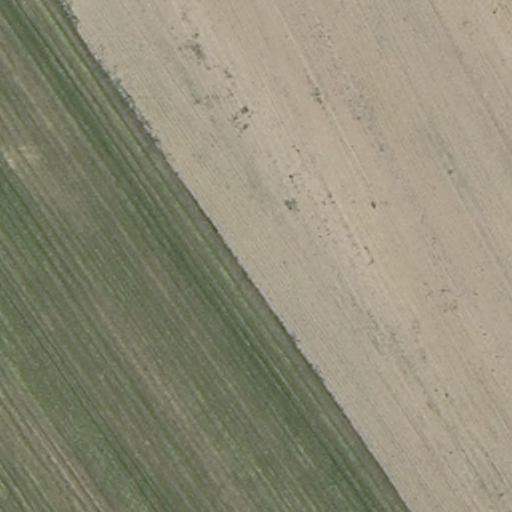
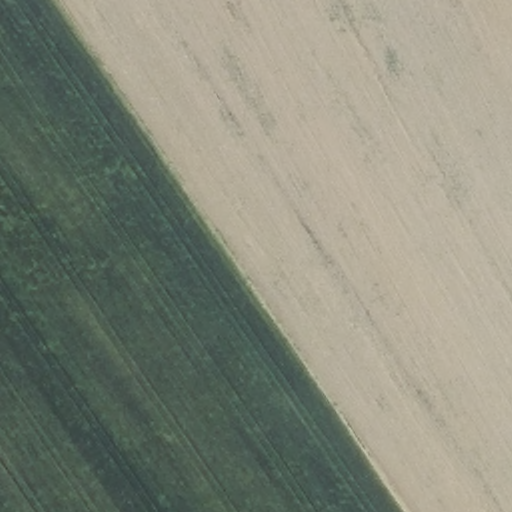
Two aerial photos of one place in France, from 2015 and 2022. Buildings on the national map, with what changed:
[]

